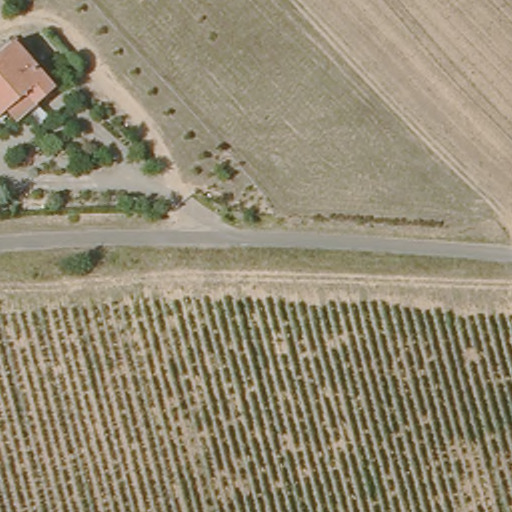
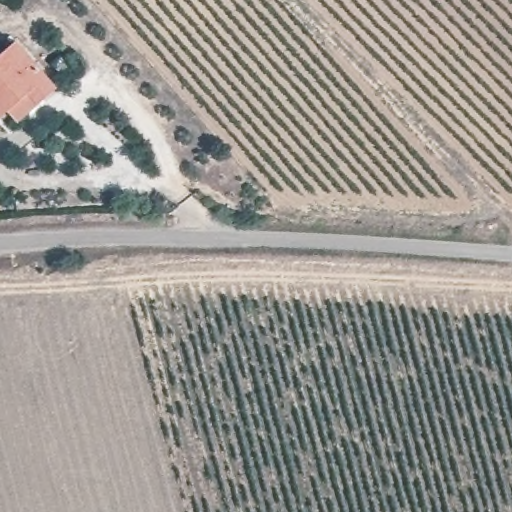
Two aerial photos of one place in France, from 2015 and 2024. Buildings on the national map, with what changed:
unchanged [(53,91),(37,104),(28,95),(0,116),(0,60),(18,47),(53,91)]

